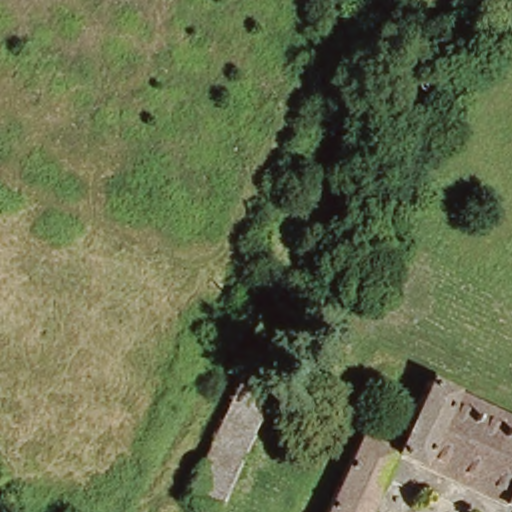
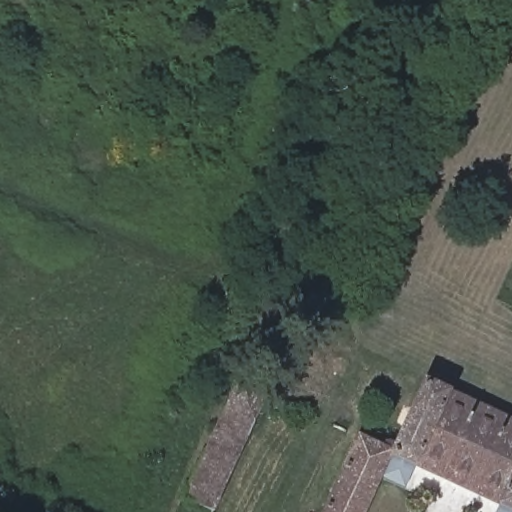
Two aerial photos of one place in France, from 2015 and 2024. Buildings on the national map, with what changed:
unchanged [(214,512),(210,512),(187,500),(239,377),(270,391),(214,512)]
unchanged [(457,399),(444,428),(512,458),(512,488),(504,505),(392,460),(425,385),(457,399)]
unchanged [(512,458),(444,428),(457,399),(512,423),(512,458)]
unchanged [(392,460),(367,512),(335,512),(364,447),(392,460)]
unchanged [(512,488),(512,508),(504,505),(512,488)]

